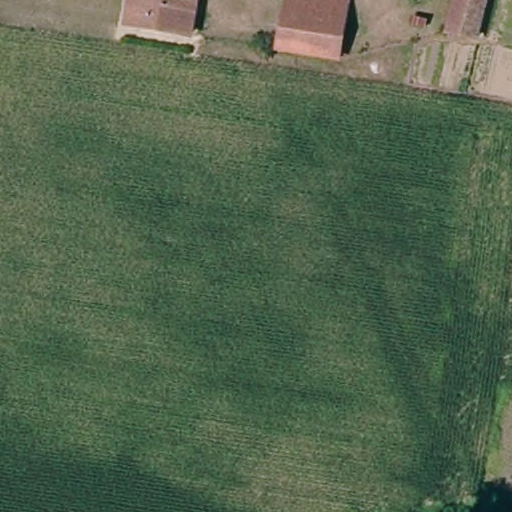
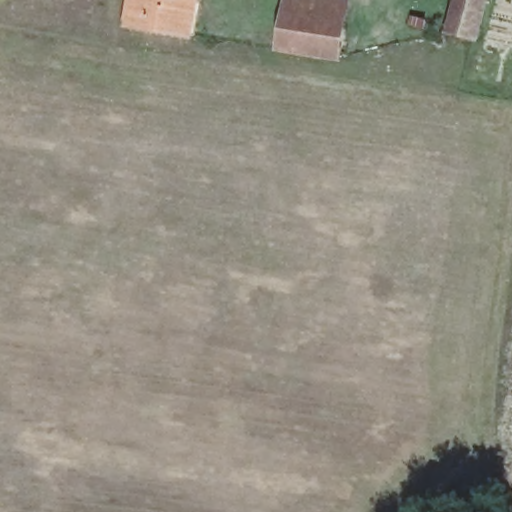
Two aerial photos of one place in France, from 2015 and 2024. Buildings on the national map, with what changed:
unchanged [(131,0),(196,0),(188,39),(126,27),(125,27),(131,0)]
unchanged [(329,0),(346,4),(335,61),(276,50),(285,0),(329,0)]
unchanged [(452,35),(456,0),(485,0),(481,37),(452,35)]

